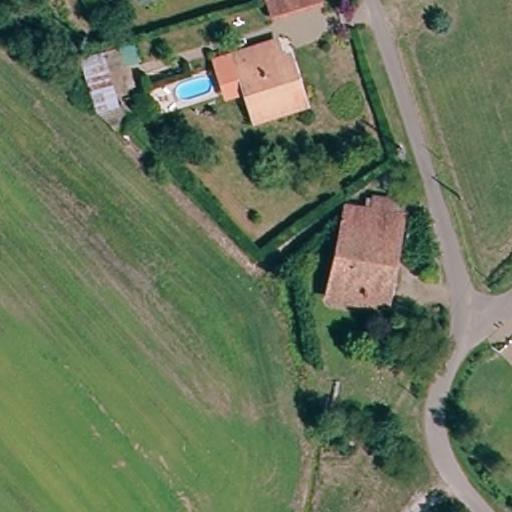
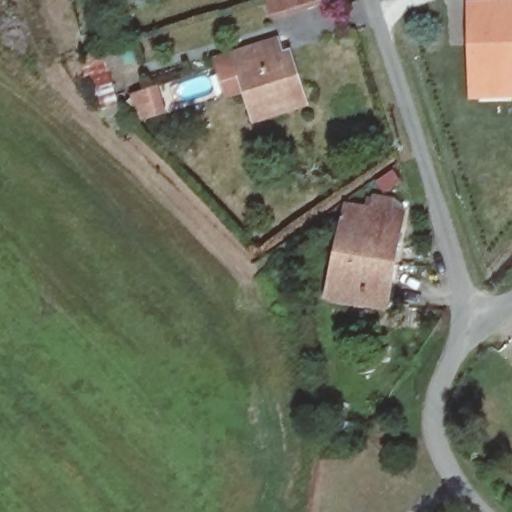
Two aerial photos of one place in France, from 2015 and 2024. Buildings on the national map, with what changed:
unchanged [(275,19),(270,0),(323,0),(324,5),(275,19)]
new [(512,99),(467,101),(465,0),(512,0),(512,99)]
unchanged [(276,39),(290,84),(299,81),(306,101),(255,118),(236,53),(276,39)]
unchanged [(104,54),(117,106),(131,121),(122,137),(97,117),(81,71),(74,74),(73,59),(104,54)]
unchanged [(326,299),(336,213),(343,208),(360,211),(395,217),(392,238),(383,308),(326,299)]

